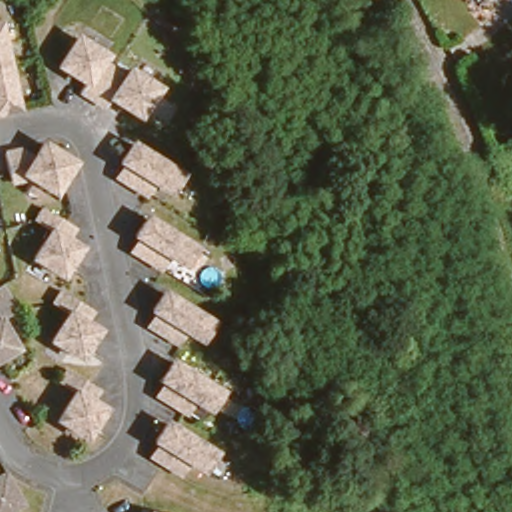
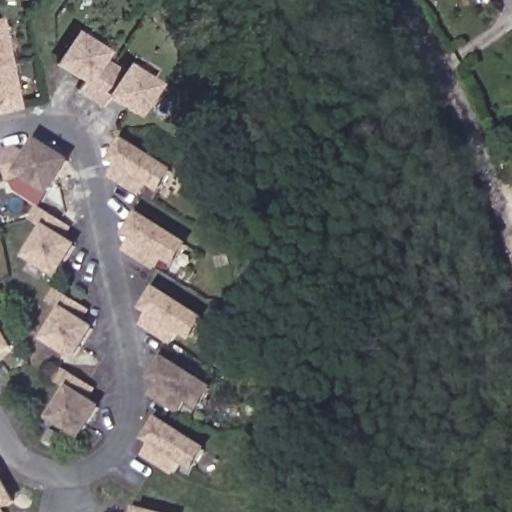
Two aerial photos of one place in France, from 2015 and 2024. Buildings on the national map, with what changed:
unchanged [(96,63),(119,76),(123,69),(148,84),(132,111),(107,96),(102,104),(76,89),(82,79),(55,63),(71,37),(101,54),(96,63)]
unchanged [(8,104),(0,106),(0,71),(8,104)]
unchanged [(24,152),(33,139),(61,157),(42,187),(18,172),(0,176),(0,148),(13,145),(24,152)]
unchanged [(160,188),(149,181),(142,191),(116,174),(123,164),(114,159),(126,139),(172,169),(160,188)]
unchanged [(59,243),(69,248),(53,277),(23,260),(39,231),(22,221),(28,210),(66,231),(59,243)]
unchanged [(170,262),(162,257),(154,268),(124,249),(133,236),(127,233),(137,215),(182,244),(170,262)]
unchanged [(188,326),(180,321),(171,334),(143,316),(151,303),(144,299),(155,282),(199,310),(188,326)]
unchanged [(74,322),(91,331),(77,358),(48,343),(63,315),(44,305),(54,286),(85,303),(74,322)]
unchanged [(6,311),(0,315),(0,299),(6,311)]
unchanged [(11,344),(0,350),(0,322),(11,344)]
unchanged [(197,402),(188,396),(180,406),(153,388),(160,378),(155,374),(167,356),(209,385),(197,402)]
unchanged [(75,398),(93,407),(78,437),(48,422),(64,392),(42,380),(51,364),(84,381),(75,398)]
unchanged [(181,463),(174,458),(166,470),(139,451),(146,441),(139,435),(152,418),(193,446),(181,463)]
unchanged [(7,497),(0,501),(0,484),(7,497)]
unchanged [(4,512),(0,512),(0,505),(4,512)]

